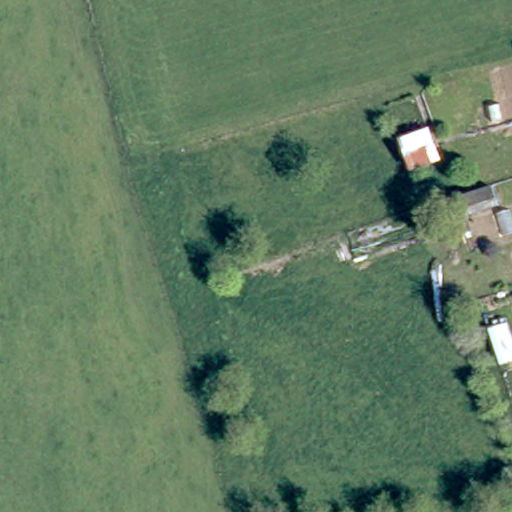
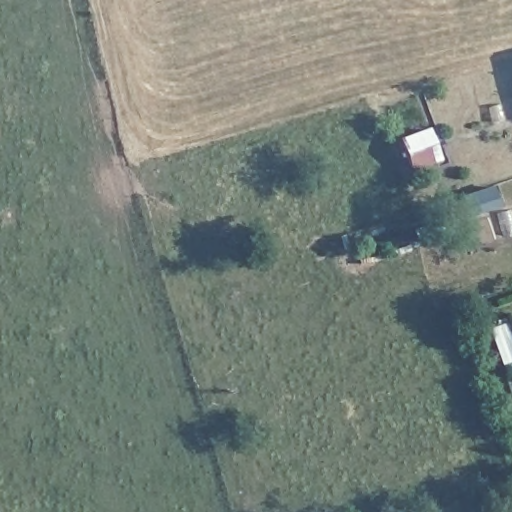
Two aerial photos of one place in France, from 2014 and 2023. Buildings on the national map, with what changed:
unchanged [(407,142),(428,134),(440,130),(452,160),(439,164),(418,171),(407,142)]
unchanged [(504,208),(475,217),(470,201),(498,192),(504,208)]

